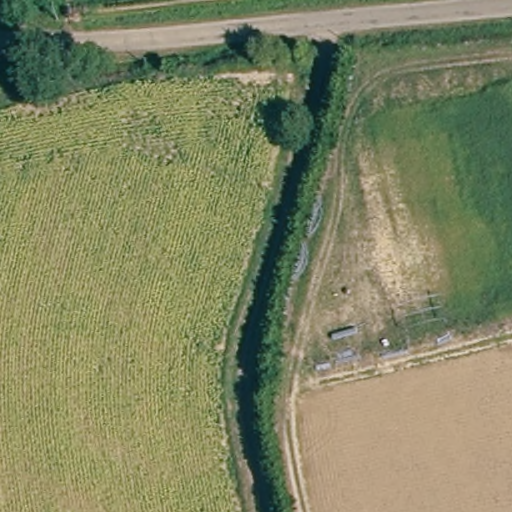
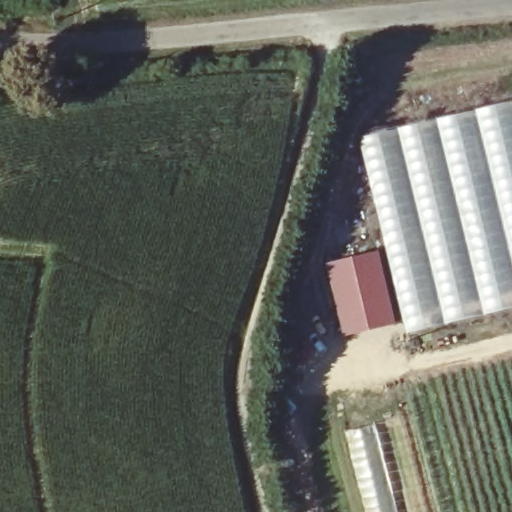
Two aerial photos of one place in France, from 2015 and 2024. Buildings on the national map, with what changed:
new [(408,334),(362,139),(512,102),(512,309),(408,334)]
new [(396,325),(345,335),(328,265),(378,253),(396,325)]

